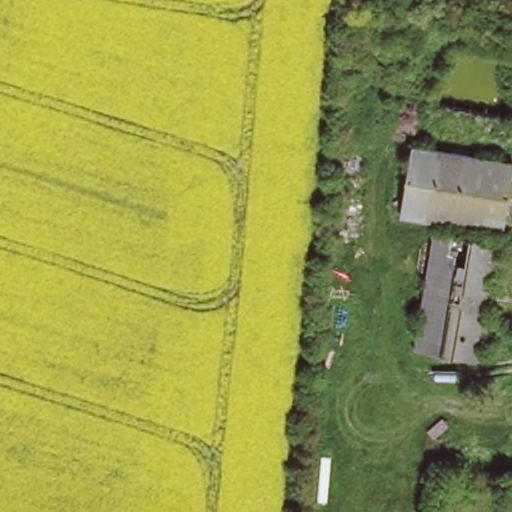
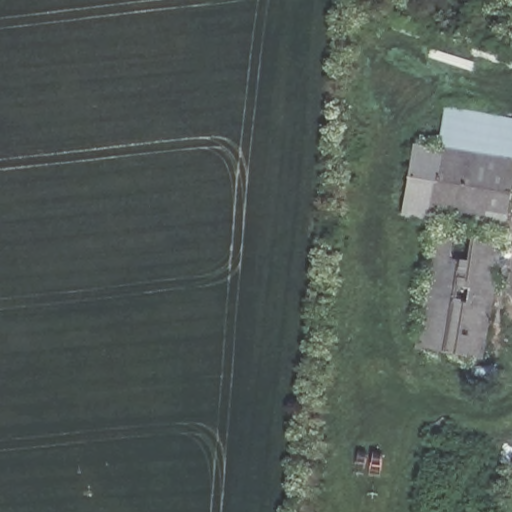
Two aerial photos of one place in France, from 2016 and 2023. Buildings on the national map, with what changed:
new [(512,119),(512,161),(437,149),(445,107),(512,119)]
unchanged [(407,216),(419,146),(512,161),(512,209),(508,232),(407,216)]
unchanged [(420,348),(442,231),(507,242),(494,318),(487,360),(477,358),(420,348)]

